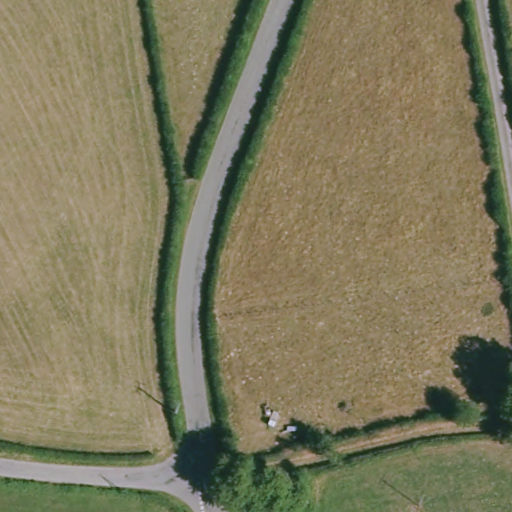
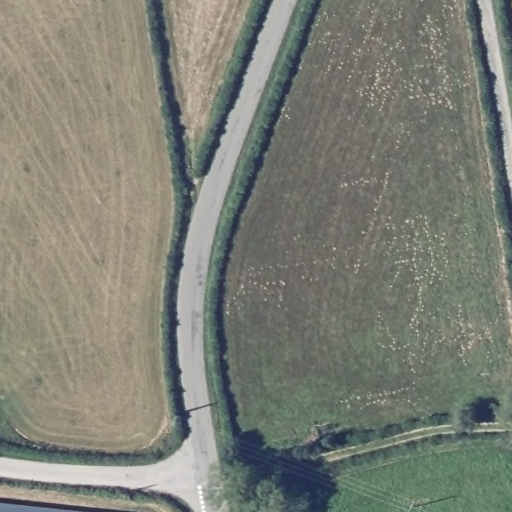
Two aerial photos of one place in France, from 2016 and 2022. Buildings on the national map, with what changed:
unchanged [(309,511),(306,512),(259,512),(255,498),(302,485),(309,511)]
new [(0,505),(64,512),(0,512),(0,505)]

